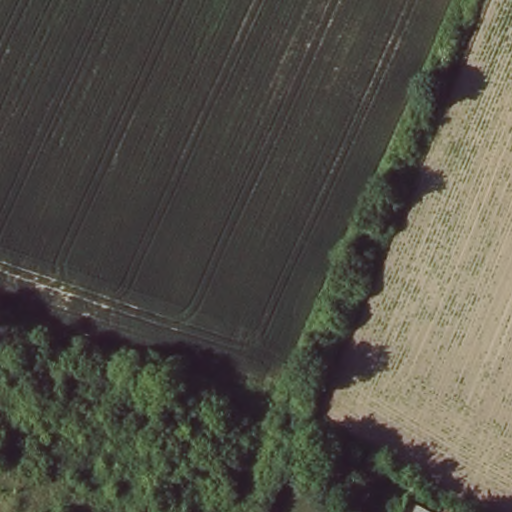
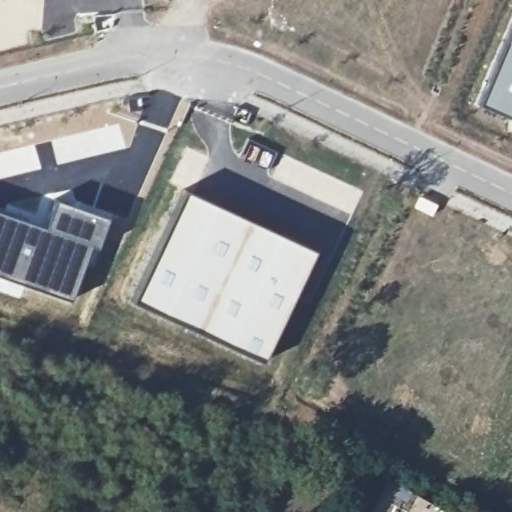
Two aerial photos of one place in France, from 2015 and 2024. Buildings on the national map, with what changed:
new [(474,104),(512,15),(512,120),(474,104)]
new [(151,257),(185,189),(314,249),(292,294),(265,358),(220,339),(134,298),(151,257)]
new [(44,222),(54,196),(110,215),(97,252),(92,253),(72,301),(0,276),(0,208),(44,222)]

